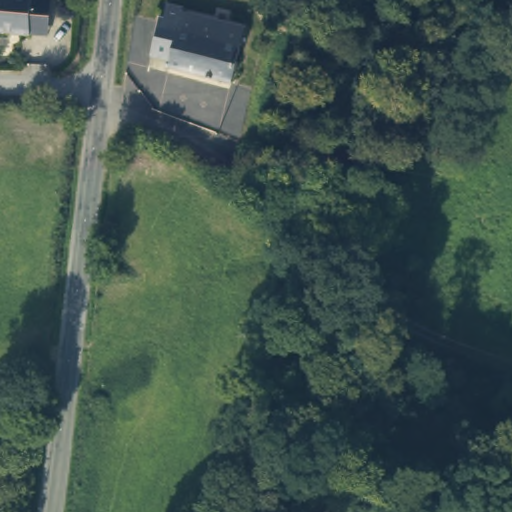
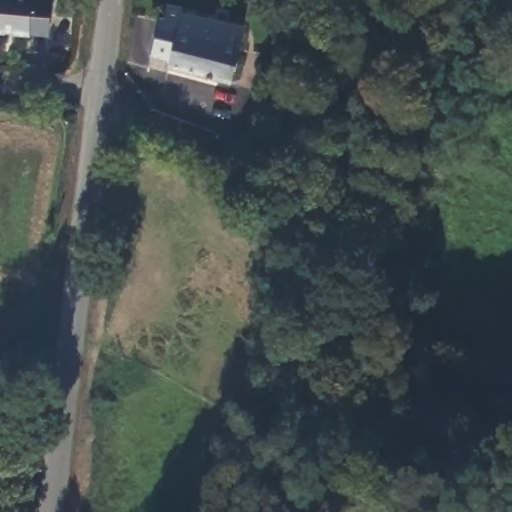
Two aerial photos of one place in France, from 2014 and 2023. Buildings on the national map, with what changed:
unchanged [(51,33),(0,29),(0,0),(54,0),(51,33)]
unchanged [(170,76),(151,71),(159,32),(163,33),(166,20),(182,24),(183,24),(182,28),(244,42),(239,62),(232,96),(169,81),(170,76)]
unchanged [(94,397),(97,402),(96,408),(92,412),(87,412),(82,409),(80,405),(81,400),(84,396),(89,395),(94,397)]

